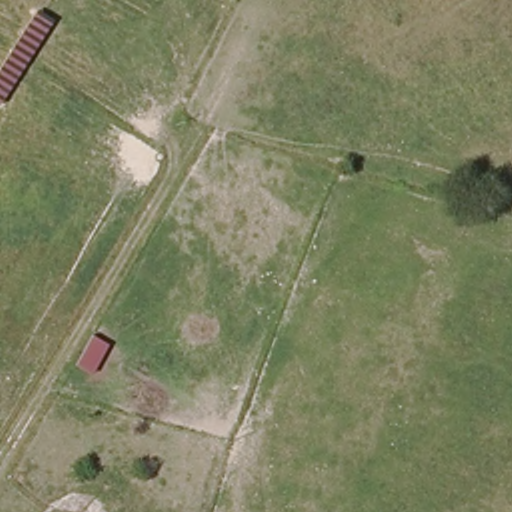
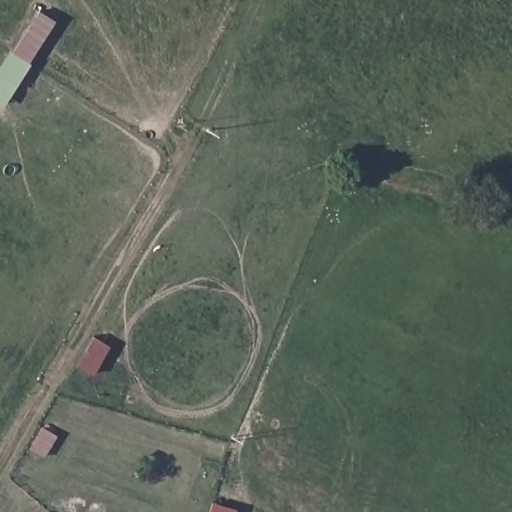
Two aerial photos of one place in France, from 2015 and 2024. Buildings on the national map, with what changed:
new [(0,62),(8,49),(11,51),(36,10),(54,21),(27,62),(29,63),(1,107),(0,107),(0,62)]

